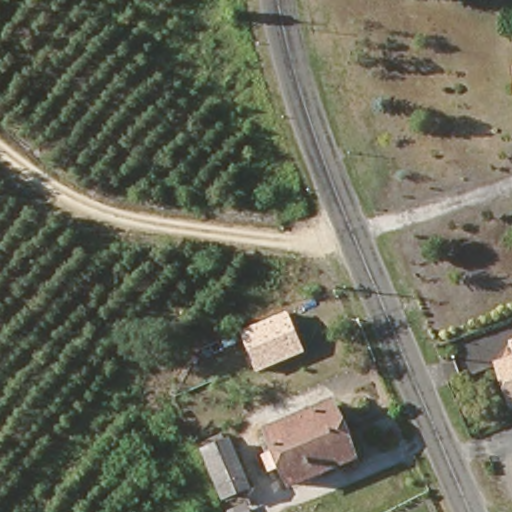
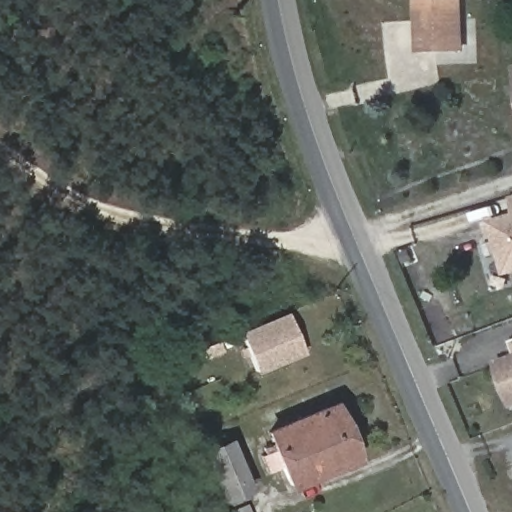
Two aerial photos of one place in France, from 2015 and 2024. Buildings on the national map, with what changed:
new [(416,54),(414,0),(463,0),(465,52),(416,54)]
new [(507,198),(512,197),(512,212),(507,198)]
new [(504,274),(488,222),(512,216),(512,272),(504,274)]
unchanged [(255,375),(240,336),(288,312),(307,352),(255,375)]
unchanged [(509,342),(512,341),(512,349),(509,342)]
unchanged [(497,369),(512,362),(512,398),(497,369)]
unchanged [(327,410),(347,462),(291,486),(269,436),(327,410)]
unchanged [(227,448),(247,492),(229,502),(209,457),(227,448)]

